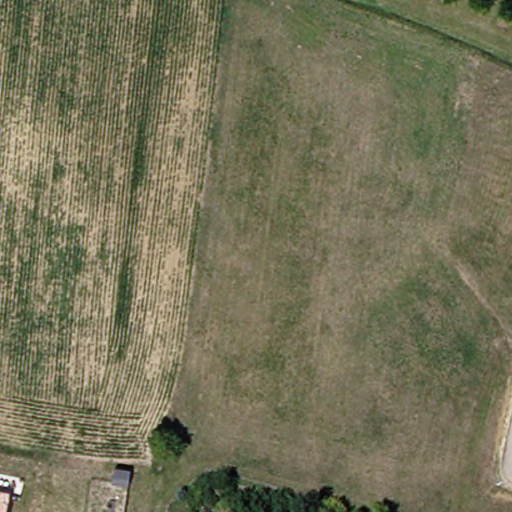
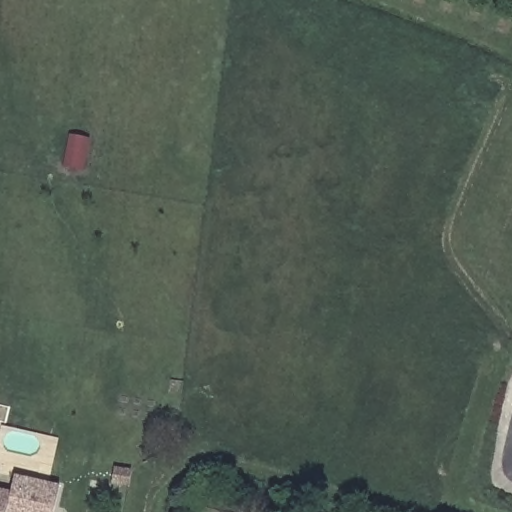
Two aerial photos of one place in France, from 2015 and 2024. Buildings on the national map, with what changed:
new [(53,512),(7,512),(11,494),(9,493),(13,473),(60,484),(53,512)]
unchanged [(11,494),(7,512),(0,512),(0,492),(11,494)]

